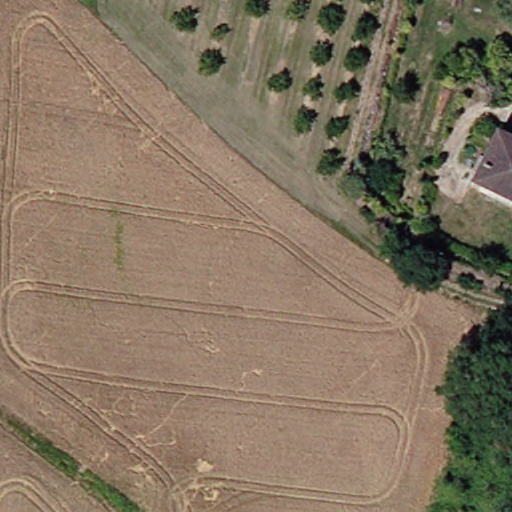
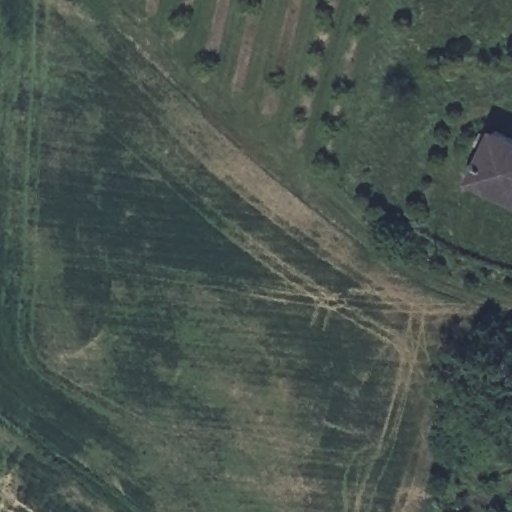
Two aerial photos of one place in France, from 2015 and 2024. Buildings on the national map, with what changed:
unchanged [(512,195),(480,181),(501,131),(512,136),(512,195)]

